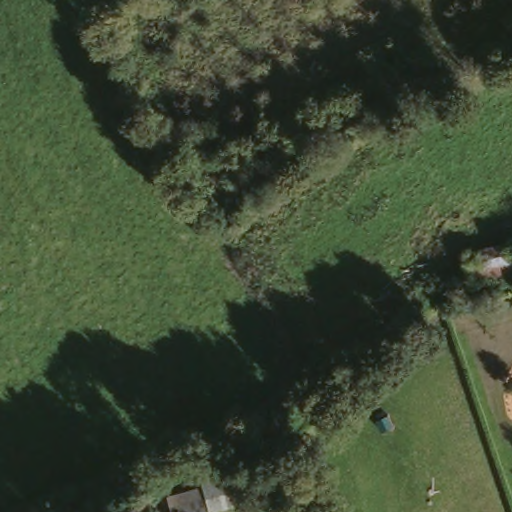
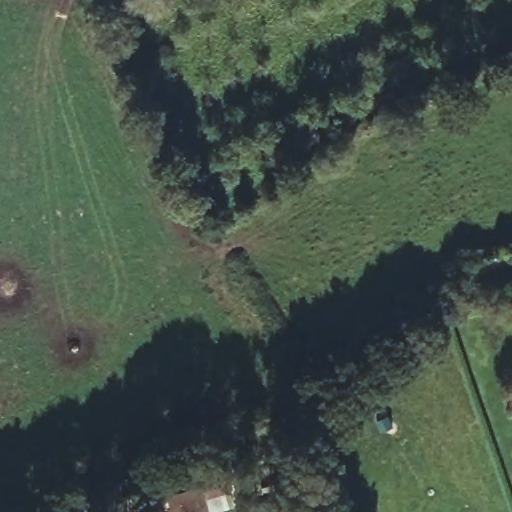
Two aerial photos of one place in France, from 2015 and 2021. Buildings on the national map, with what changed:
unchanged [(167,512),(161,492),(191,482),(218,471),(232,506),(223,512),(167,512)]

